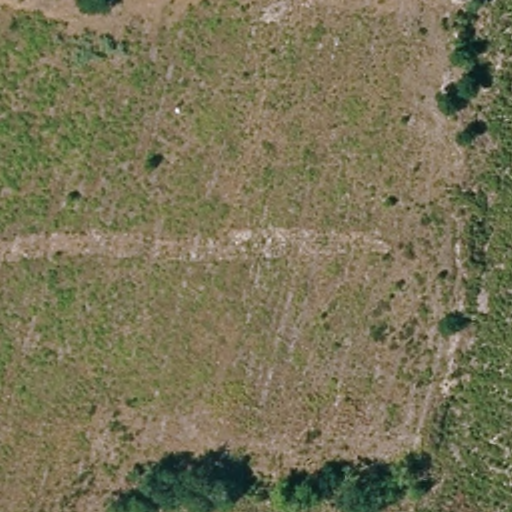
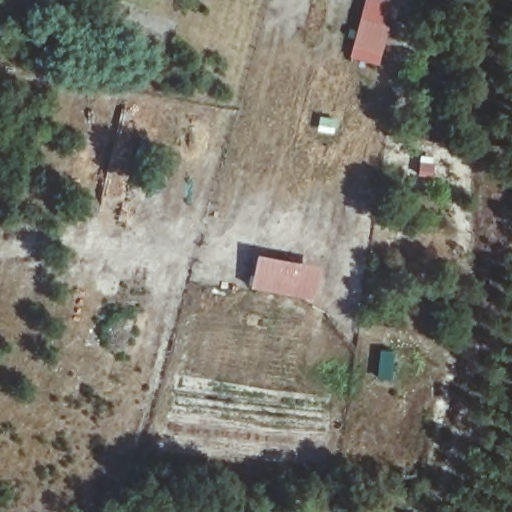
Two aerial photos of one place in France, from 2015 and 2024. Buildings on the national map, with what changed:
new [(351,58),(365,0),(389,0),(384,24),(389,25),(378,66),(351,58)]
new [(319,263),(317,297),(252,292),(254,258),(319,263)]

